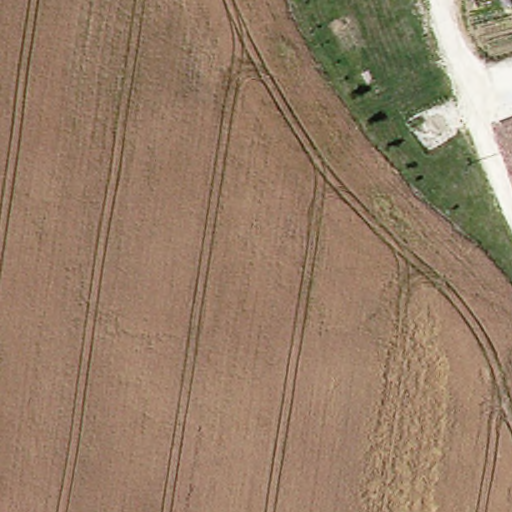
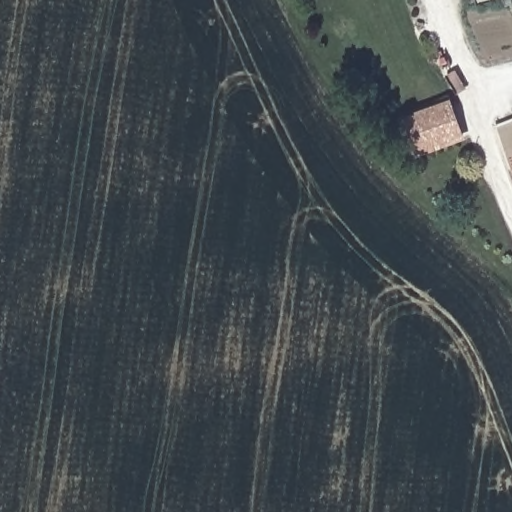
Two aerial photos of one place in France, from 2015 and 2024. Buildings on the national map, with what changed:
new [(412,160),(396,119),(450,99),(466,141),(412,160)]
unchanged [(512,115),(512,175),(493,122),(512,115)]

